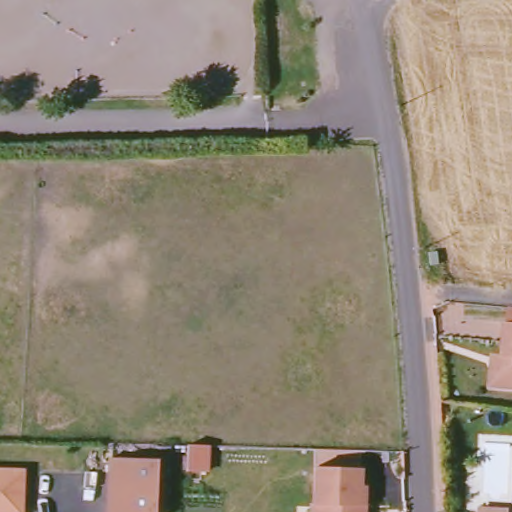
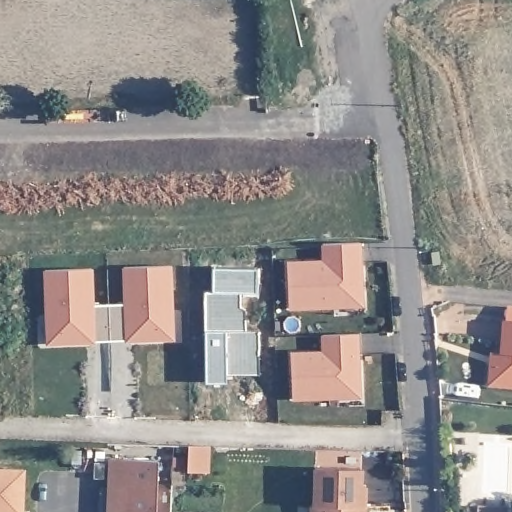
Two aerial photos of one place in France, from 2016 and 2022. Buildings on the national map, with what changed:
new [(362,307),(289,309),(287,261),(322,260),(320,245),(360,244),(362,307)]
new [(47,343),(41,270),(92,267),(95,304),(122,302),(120,268),(171,264),(174,340),(47,343)]
unchanged [(512,392),(491,389),(492,372),(497,369),(500,355),(505,356),(509,326),(512,326),(512,392)]
new [(359,398),(292,401),(290,352),(320,351),(320,335),(357,333),(359,398)]
unchanged [(202,445),(200,472),(182,471),(183,445),(202,445)]
unchanged [(155,460),(155,488),(154,512),(107,512),(108,485),(109,458),(155,460)]
unchanged [(22,469),(20,511),(19,512),(0,512),(0,468),(22,469)]
unchanged [(319,504),(320,505),(322,468),(369,470),(367,486),(372,486),(372,507),(367,507),(366,512),(318,512),(319,504)]
unchanged [(507,512),(483,512),(484,509),(507,512)]

